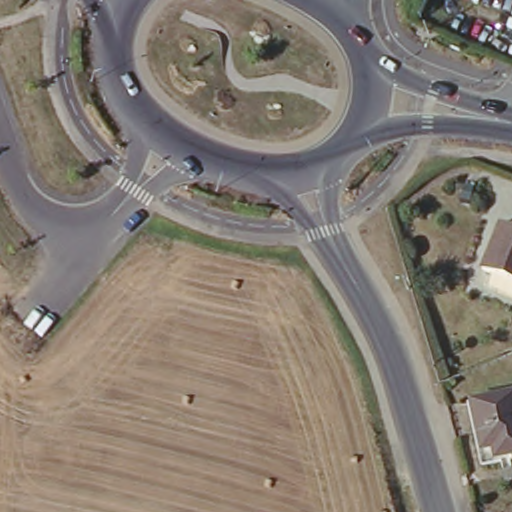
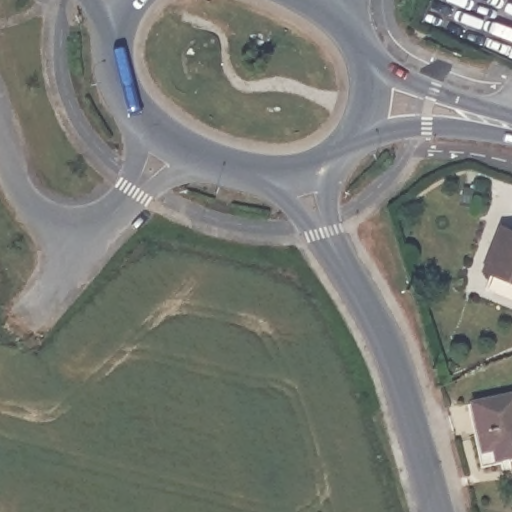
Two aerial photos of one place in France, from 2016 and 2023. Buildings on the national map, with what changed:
unchanged [(512,281),(479,268),(498,223),(512,229),(512,281)]
unchanged [(430,349),(432,358),(425,360),(423,351),(430,349)]
unchanged [(512,407),(512,459),(494,464),(488,443),(476,447),(465,405),(508,393),(512,407)]

